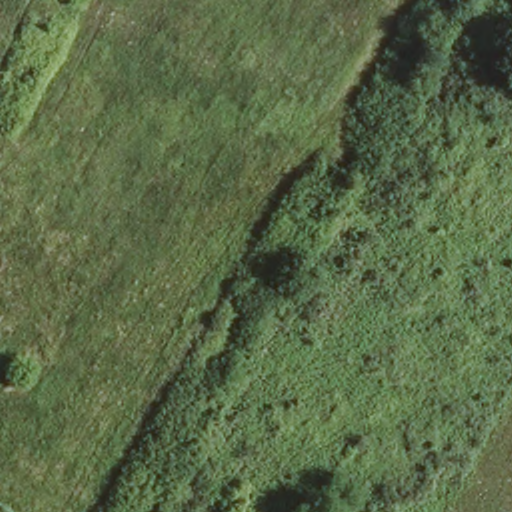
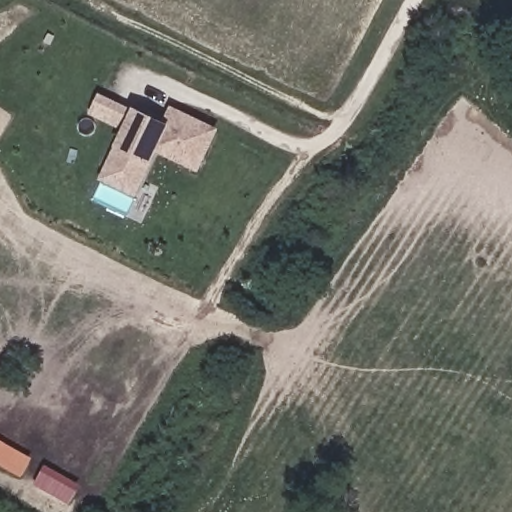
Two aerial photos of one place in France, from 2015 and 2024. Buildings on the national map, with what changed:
new [(89,114),(99,91),(163,120),(170,105),(219,128),(197,172),(156,152),(135,196),(97,179),(121,129),(89,114)]
new [(22,477),(0,464),(0,437),(34,457),(22,477)]

